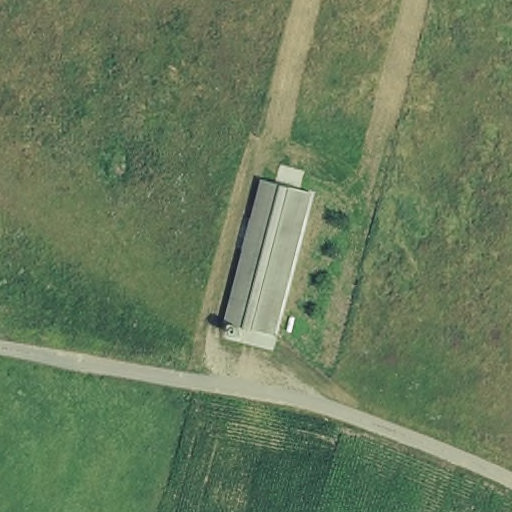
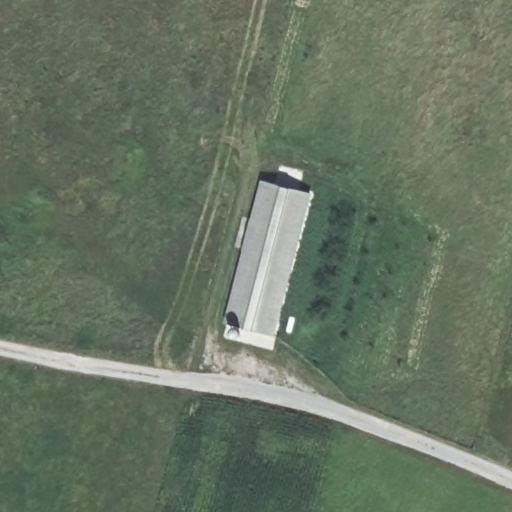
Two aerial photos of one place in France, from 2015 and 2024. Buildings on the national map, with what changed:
unchanged [(310,197),(274,341),(225,328),(262,186),(310,197)]

